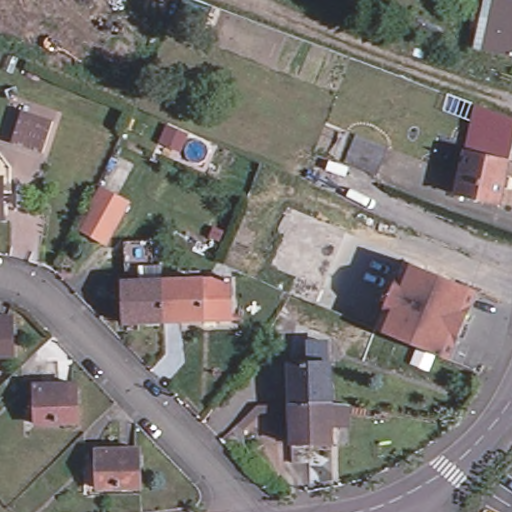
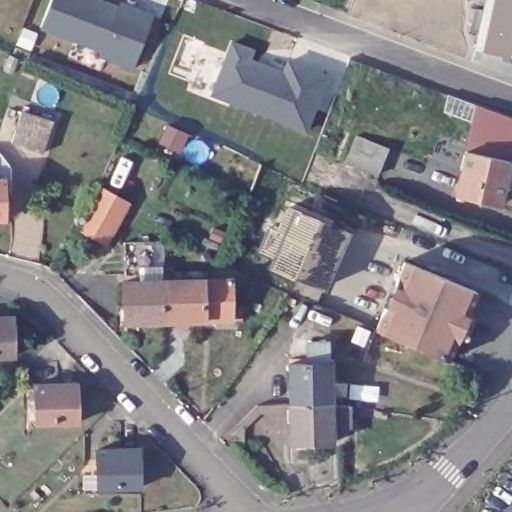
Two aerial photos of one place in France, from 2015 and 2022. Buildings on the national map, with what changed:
new [(118,6),(120,1),(154,14),(134,69),(98,57),(100,52),(39,30),(50,0),(104,0),(118,6)]
unchanged [(484,10),(486,0),(512,0),(512,57),(482,50),(475,49),(484,10)]
new [(233,42),(253,50),(249,63),(265,69),(267,66),(285,73),(290,61),(328,75),(307,130),(213,95),(233,42)]
unchanged [(52,124),(40,153),(27,149),(11,145),(24,116),(40,121),(52,124)]
demolished [(415,153),(393,145),(400,125),(402,122),(423,130),(444,138),(457,143),(457,145),(447,167),(435,162),(415,153)]
unchanged [(345,159),(350,145),(355,130),(385,141),(380,156),(375,170),(345,159)]
unchanged [(469,153),(512,163),(512,165),(502,206),(457,195),(469,153)]
unchanged [(13,178),(13,186),(5,186),(6,227),(0,227),(0,160),(13,178)]
unchanged [(124,204),(97,245),(67,225),(93,184),(124,204)]
unchanged [(167,280),(129,282),(127,241),(153,240),(155,265),(165,264),(167,280)]
unchanged [(410,264),(469,289),(482,295),(475,313),(402,283),(410,264)]
unchanged [(234,317),(208,319),(205,277),(231,276),(234,317)]
unchanged [(208,319),(169,321),(167,280),(205,277),(208,319)]
unchanged [(169,321),(128,323),(126,282),(129,282),(167,280),(169,321)]
unchanged [(402,283),(475,313),(453,363),(382,333),(402,283)]
unchanged [(17,323),(18,361),(0,361),(0,323),(17,323)]
unchanged [(292,405),(292,365),(308,364),(308,344),(332,344),(332,364),(332,404),(349,403),(349,424),(332,424),(332,446),(307,446),(307,465),(292,465),(292,446),(292,405)]
unchanged [(37,385),(82,385),(82,423),(38,424),(37,385)]
unchanged [(100,485),(99,449),(142,448),(143,485),(100,485)]

